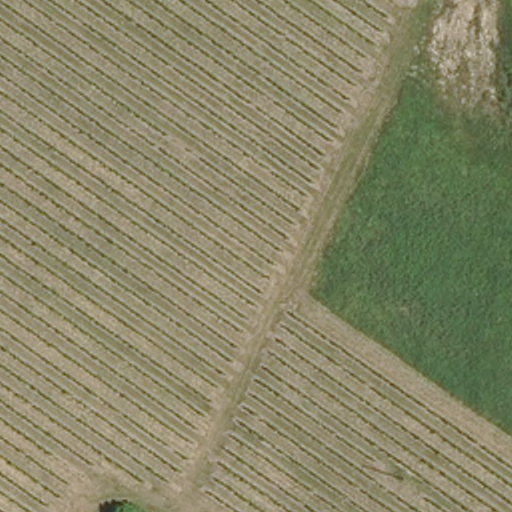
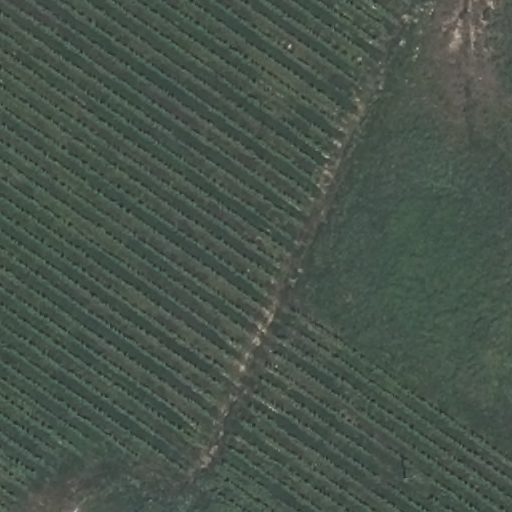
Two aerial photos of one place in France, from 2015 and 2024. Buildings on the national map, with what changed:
[]

